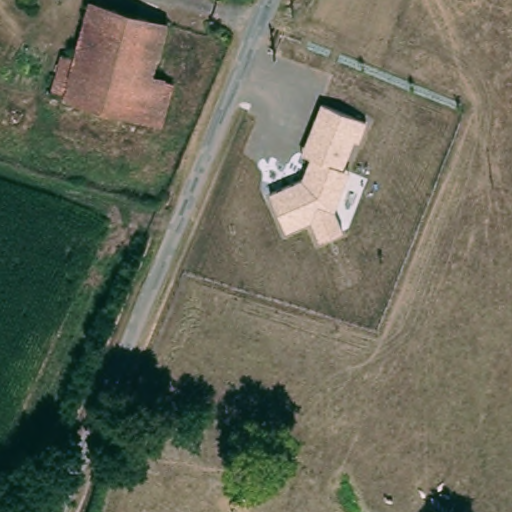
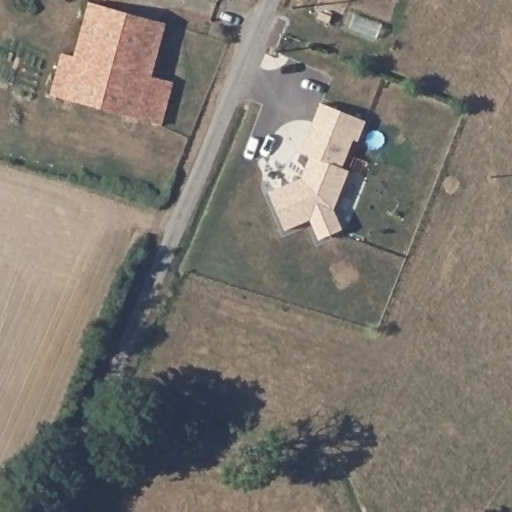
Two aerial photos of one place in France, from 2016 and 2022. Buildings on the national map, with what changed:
unchanged [(79,50),(92,0),(110,0),(171,16),(158,68),(176,72),(164,116),(54,85),(64,47),(79,50)]
unchanged [(270,194),(301,179),(311,157),(300,154),(320,104),(366,122),(359,142),(353,140),(342,167),(349,171),(334,210),(342,231),(320,240),(311,220),(286,231),(270,194)]

